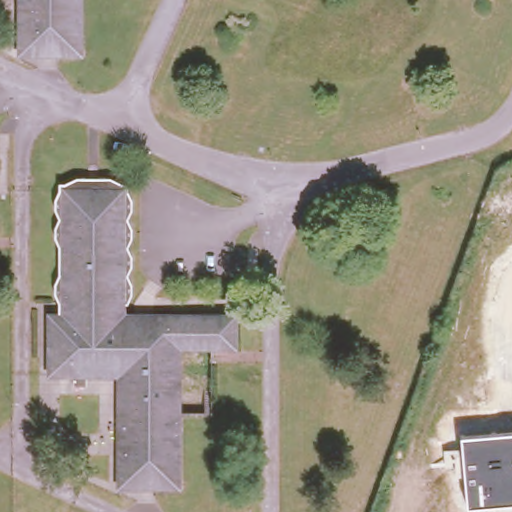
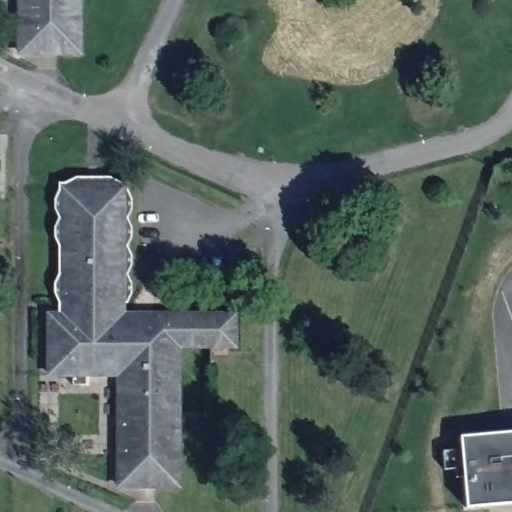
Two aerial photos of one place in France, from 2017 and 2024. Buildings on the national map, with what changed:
unchanged [(83,45),(21,45),(20,0),(81,0),(83,45)]
unchanged [(52,232),(51,222),(56,212),(51,203),(51,193),(55,183),(55,176),(61,176),(73,170),(106,169),(118,175),(124,175),(124,182),(129,191),(129,201),(125,211),(129,220),(130,230),(125,240),(130,249),(131,259),(126,269),(131,278),(131,288),(126,298),(122,298),(123,310),(233,315),(233,346),(176,344),(172,485),(113,483),(116,371),(85,370),(84,380),(70,380),(70,370),(48,369),(49,311),(58,311),(53,289),(53,279),(57,269),(56,241),(52,232)]
unchanged [(460,437),(512,432),(512,503),(467,508),(460,437)]

